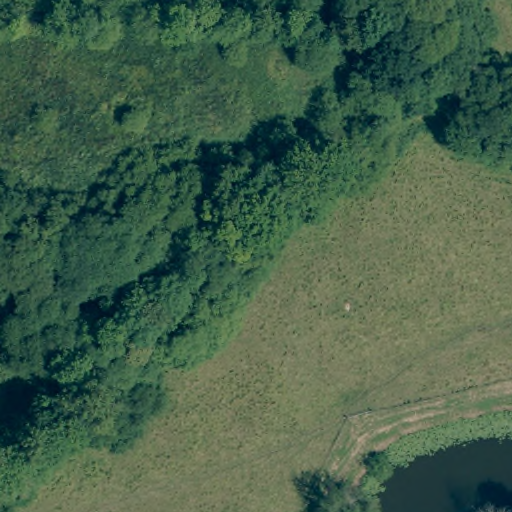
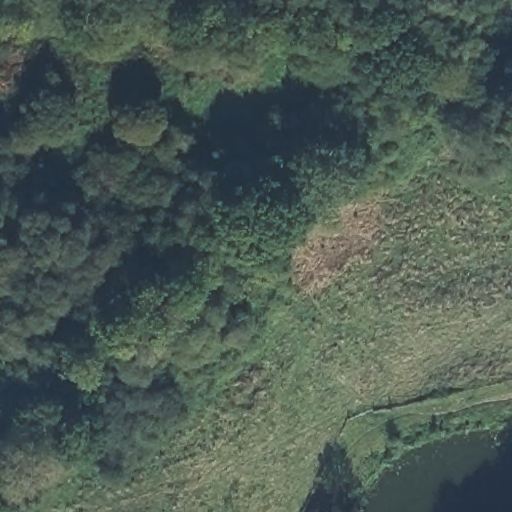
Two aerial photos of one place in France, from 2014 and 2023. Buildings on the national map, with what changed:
[]

